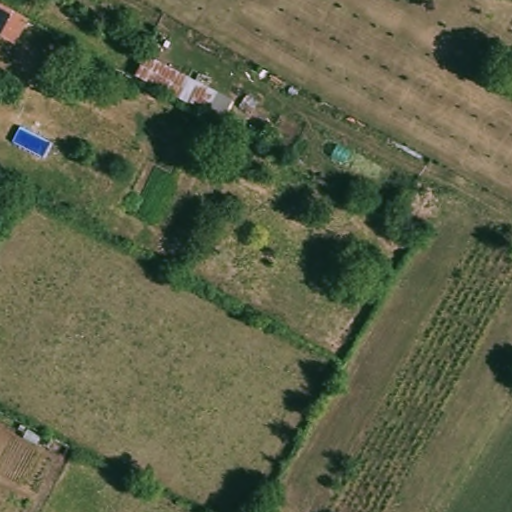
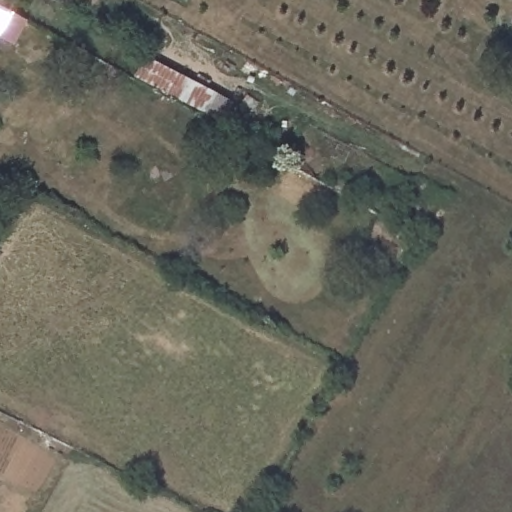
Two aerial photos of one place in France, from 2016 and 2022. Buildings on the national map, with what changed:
unchanged [(12,34),(0,27),(0,0),(6,0),(25,10),(12,34)]
unchanged [(200,106),(134,72),(142,50),(215,85),(200,106)]

